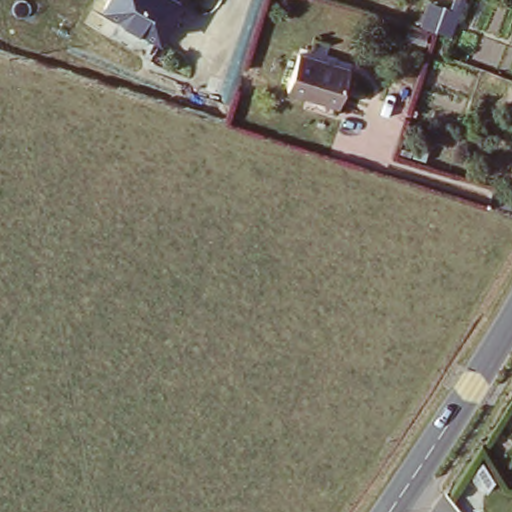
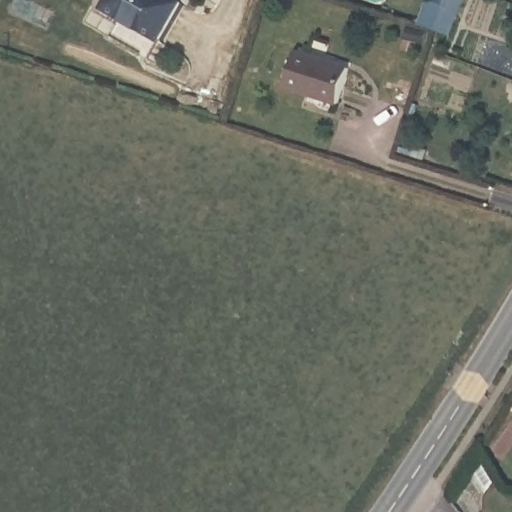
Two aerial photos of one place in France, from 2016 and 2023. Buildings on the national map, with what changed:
unchanged [(187,3),(162,42),(102,6),(106,0),(182,0),(187,3)]
unchanged [(352,74),(341,108),(289,89),(302,57),(352,74)]

